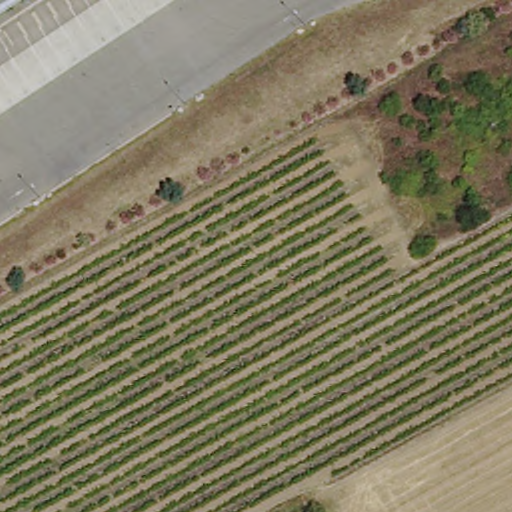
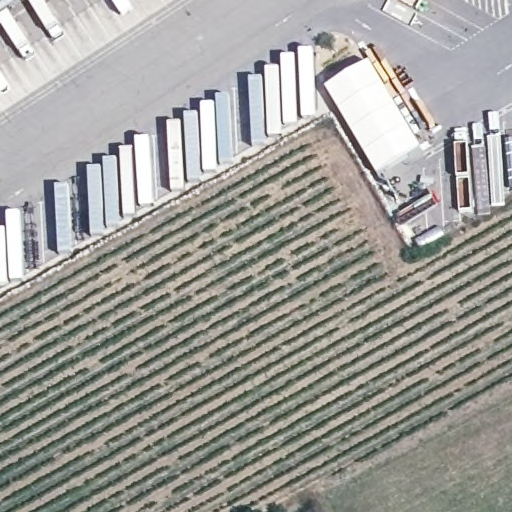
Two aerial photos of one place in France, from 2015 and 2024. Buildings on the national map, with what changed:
unchanged [(0,14),(0,0),(22,0),(0,14)]
new [(423,150),(379,175),(328,89),(371,63),(423,150)]

